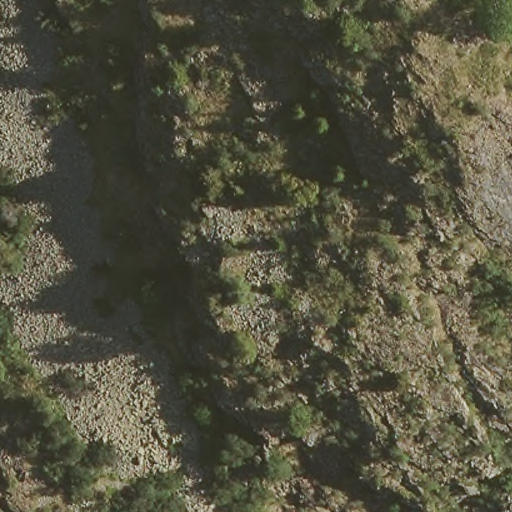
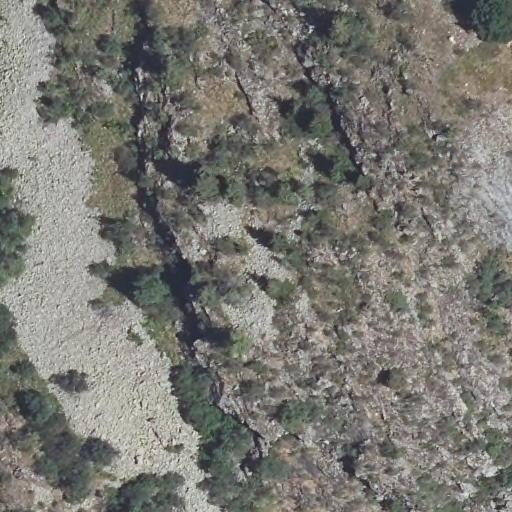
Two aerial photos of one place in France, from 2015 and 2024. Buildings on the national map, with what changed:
[]

